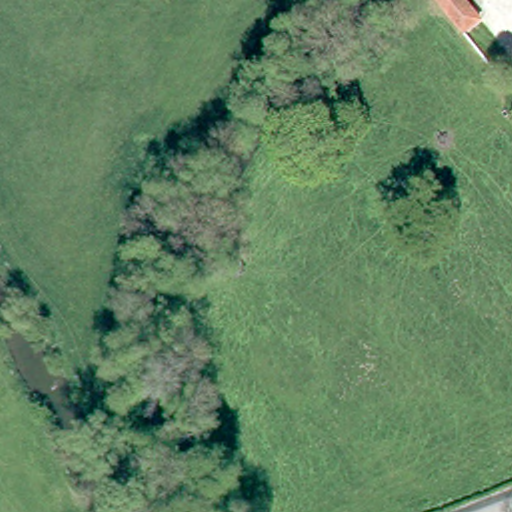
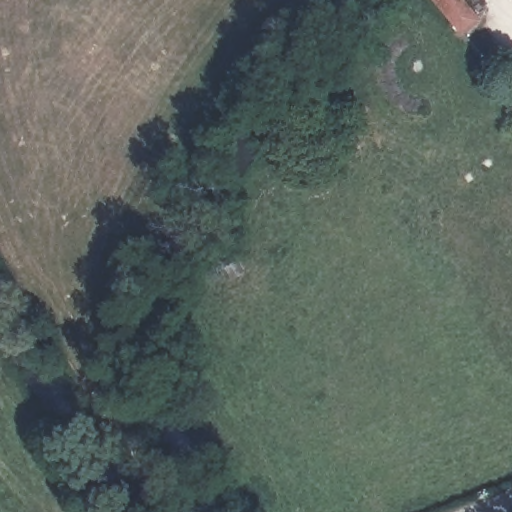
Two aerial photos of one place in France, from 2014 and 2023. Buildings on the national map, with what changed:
unchanged [(461,36),(432,0),(462,0),(479,21),(461,36)]
unchanged [(230,262),(239,272),(231,279),(223,270),(221,272),(211,259),(226,248),(235,258),(230,262)]

